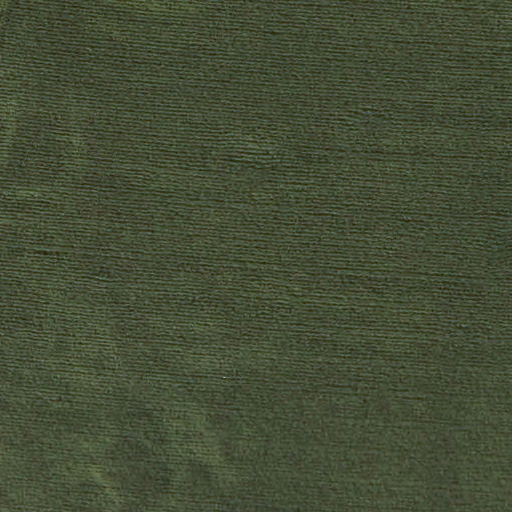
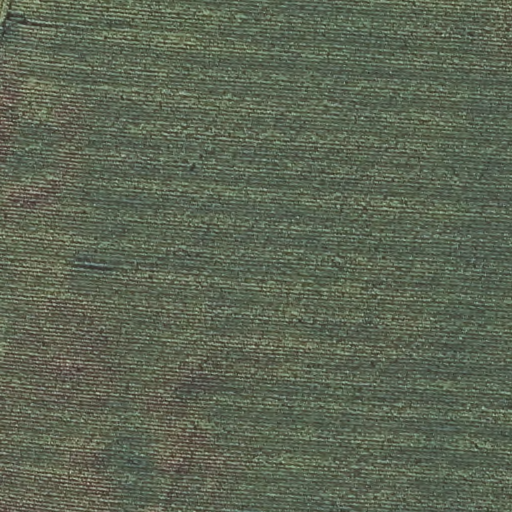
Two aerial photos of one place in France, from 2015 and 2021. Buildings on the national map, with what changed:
[]

